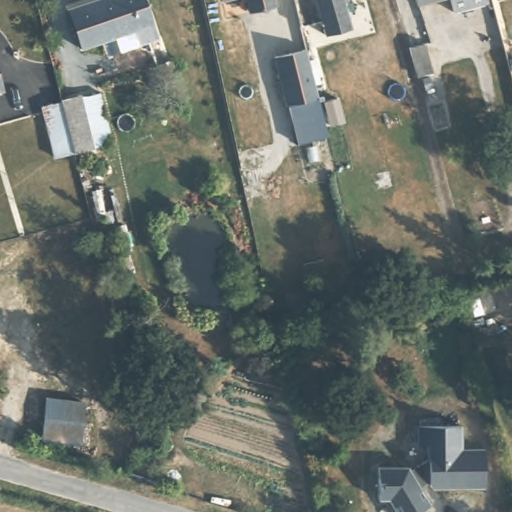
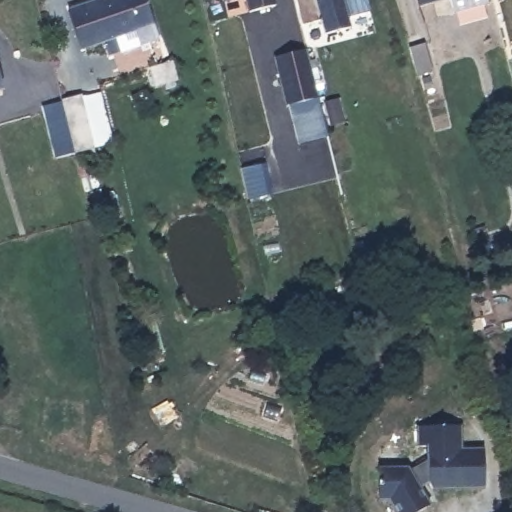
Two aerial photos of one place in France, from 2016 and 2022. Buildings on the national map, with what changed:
unchanged [(160,37),(122,51),(117,34),(82,46),(68,8),(91,0),(148,0),(160,37)]
unchanged [(267,3),(241,10),(238,0),(266,0),(267,3)]
unchanged [(337,1),(345,31),(320,38),(316,25),(297,30),(290,0),(339,0),(337,1)]
unchanged [(418,2),(418,0),(425,0),(418,2)]
unchanged [(455,7),(454,0),(483,0),(455,7)]
unchanged [(291,101),(288,102),(276,53),(308,45),(320,95),(291,101)]
unchanged [(425,54),(433,84),(419,87),(411,57),(425,54)]
unchanged [(178,76),(157,81),(152,62),(173,56),(178,76)]
unchanged [(0,80),(0,72),(2,80),(0,80)]
unchanged [(40,103),(58,100),(57,98),(78,94),(78,96),(97,92),(106,142),(87,146),(68,150),(49,154),(40,103)]
unchanged [(320,95),(330,134),(300,140),(291,101),(320,95)]
new [(81,448),(41,443),(46,397),(87,403),(81,448)]
unchanged [(439,458),(438,442),(418,443),(417,423),(459,422),(460,441),(483,442),(484,480),(431,482),(428,478),(419,483),(430,499),(411,512),(400,512),(389,495),(379,496),(379,467),(409,467),(411,471),(439,458)]

